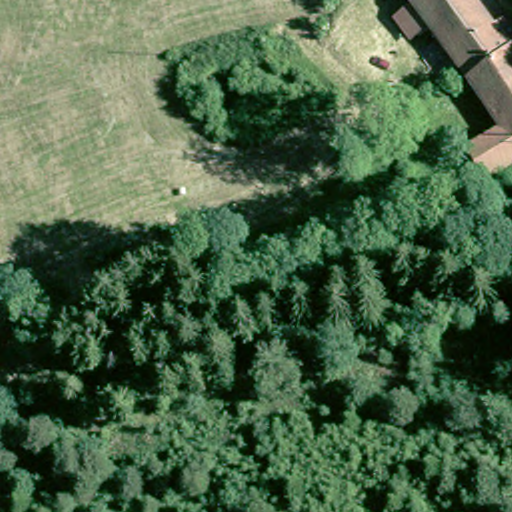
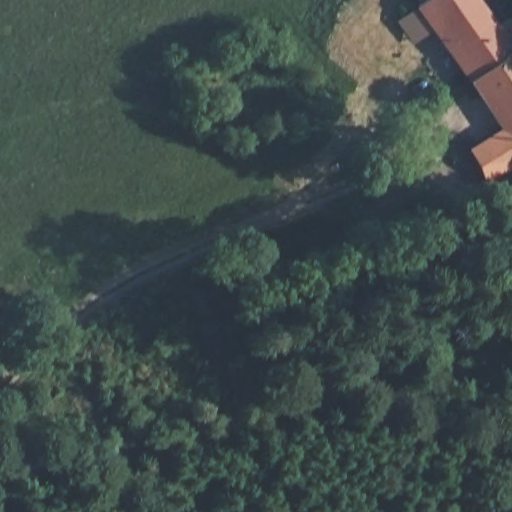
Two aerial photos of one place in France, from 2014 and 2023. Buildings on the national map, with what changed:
unchanged [(409,47),(389,26),(411,7),(419,0),(463,0),(487,28),(502,17),(512,30),(512,39),(504,47),(460,85),(423,37),(409,47)]
unchanged [(411,7),(405,0),(419,0),(411,7)]
unchanged [(512,139),(512,165),(488,186),(467,162),(499,135),(460,85),(504,47),(512,57),(512,133),(509,136),(512,139)]

